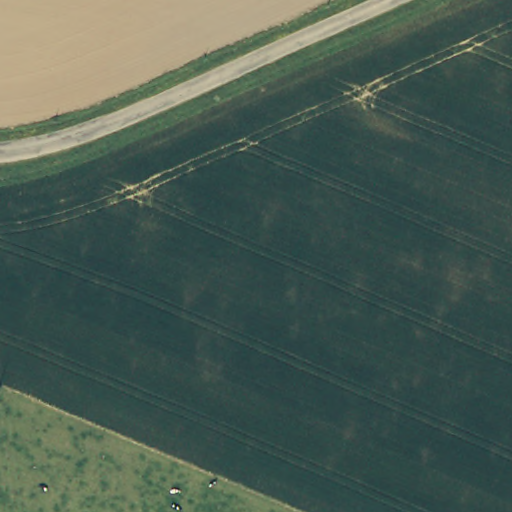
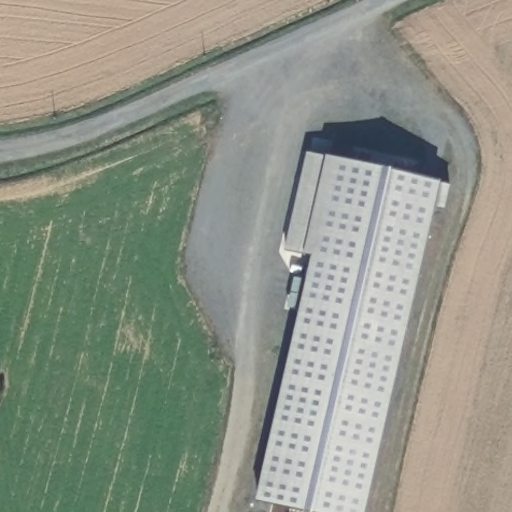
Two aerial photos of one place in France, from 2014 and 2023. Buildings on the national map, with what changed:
new [(331,157),(441,183),(452,186),(446,211),(436,209),(366,512),(301,512),(257,503),(313,257),(287,252),(309,154),(331,157)]

